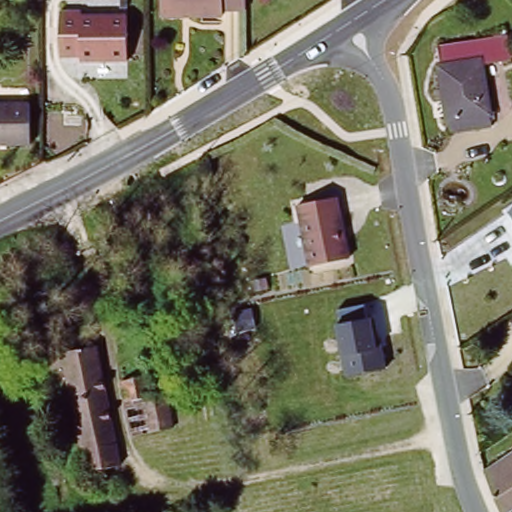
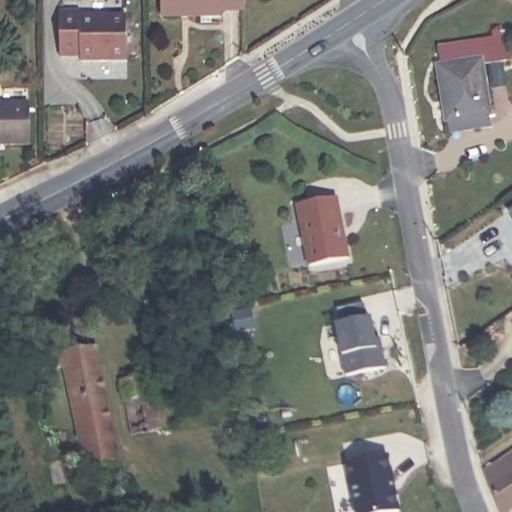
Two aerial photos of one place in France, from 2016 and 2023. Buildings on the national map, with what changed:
unchanged [(216,3),(216,12),(156,13),(156,0),(235,0),(235,4),(216,3)]
unchanged [(126,23),(125,66),(77,66),(77,24),(126,23)]
unchanged [(482,68),(487,110),(486,122),(466,125),(464,114),(450,116),(444,68),(447,63),(445,48),(495,41),(497,66),(482,68)]
unchanged [(32,147),(0,147),(0,105),(32,106),(32,147)]
unchanged [(292,207),(332,199),(344,262),(305,269),(292,207)]
unchanged [(509,211),(512,208),(512,215),(509,211)]
unchanged [(342,360),(335,324),(340,323),(337,310),(363,304),(366,318),(370,317),(374,336),(380,336),(385,367),(346,376),(342,360)]
unchanged [(95,344),(119,481),(88,487),(66,364),(50,367),(47,351),(95,344)]
unchanged [(149,375),(154,393),(167,390),(174,426),(135,434),(123,380),(149,375)]
unchanged [(510,512),(492,512),(480,476),(512,454),(512,511),(510,512)]
new [(395,512),(339,512),(336,497),(350,494),(344,464),(389,455),(400,511),(395,512)]

